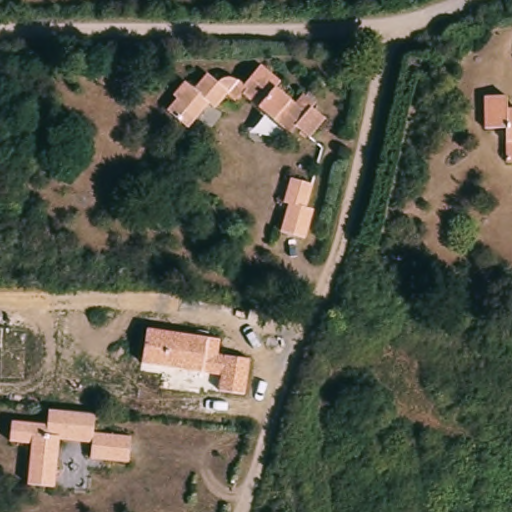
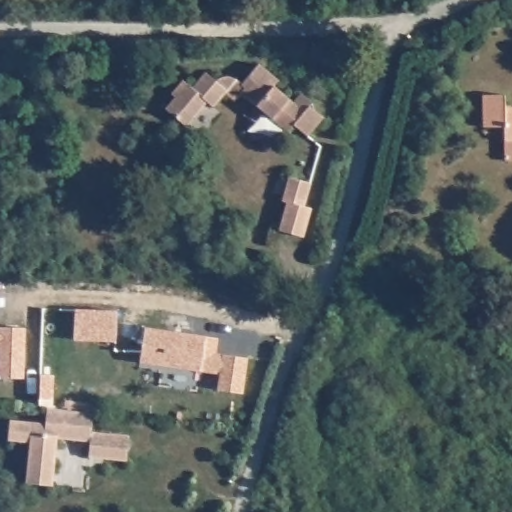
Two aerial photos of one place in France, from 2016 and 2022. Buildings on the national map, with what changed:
unchanged [(236,98),(232,103),(224,97),(212,111),(206,106),(201,112),(189,127),(167,110),(177,97),(174,94),(185,80),(194,87),(200,80),(207,72),(218,81),(220,81),(222,81),(225,81),(226,82),(227,82),(229,84),(230,84),(230,83),(237,88),(253,68),(273,85),(268,91),(288,107),(296,97),(307,107),(305,111),(317,122),(302,141),(288,130),(283,137),(236,98)]
unchanged [(503,136),(503,122),(482,122),(482,90),(503,89),(504,107),(512,107),(512,156),(504,156),(503,136)]
unchanged [(307,184),(301,207),(308,209),(305,220),(301,238),(276,232),(280,217),(284,204),(279,202),(286,178),(307,184)]
new [(75,310),(117,312),(116,342),(74,340),(75,310)]
new [(25,327),(23,378),(0,377),(0,327),(25,327)]
unchanged [(244,393),(220,390),(222,373),(142,362),(146,329),(220,338),(218,355),(249,358),(244,393)]
unchanged [(44,420),(46,403),(95,411),(94,428),(129,430),(128,461),(89,457),(90,443),(61,439),(55,486),(23,482),(27,442),(7,441),(10,415),(44,420)]

